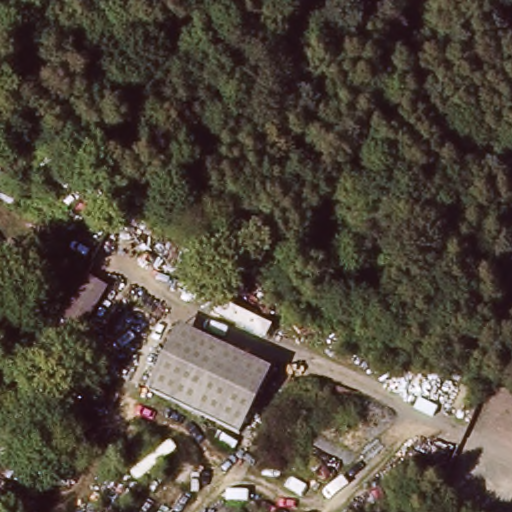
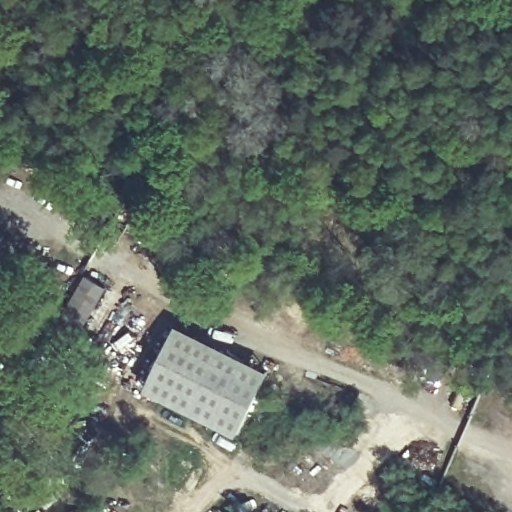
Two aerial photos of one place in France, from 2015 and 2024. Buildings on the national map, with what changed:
unchanged [(60,324),(85,277),(105,289),(80,336),(60,324)]
unchanged [(178,323),(265,374),(230,434),(144,383),(178,323)]

